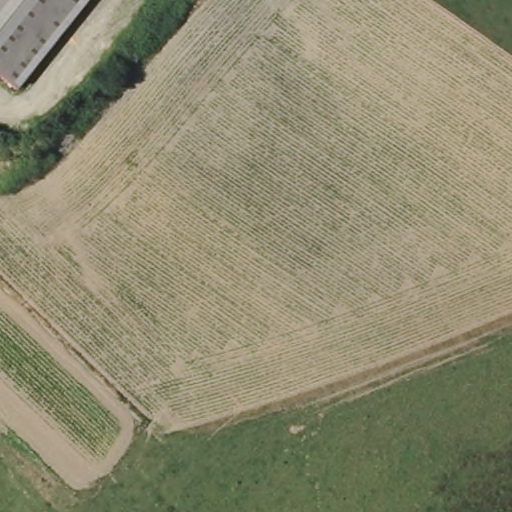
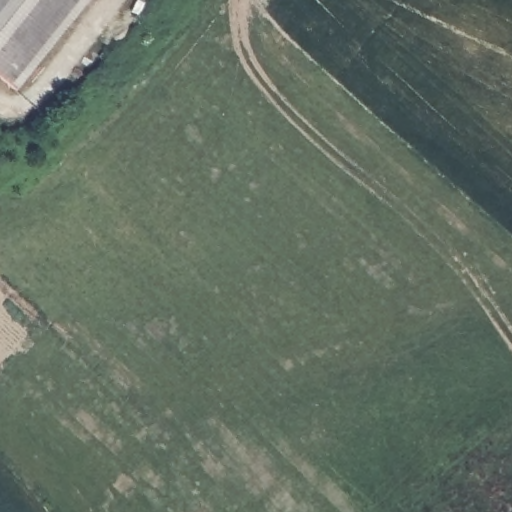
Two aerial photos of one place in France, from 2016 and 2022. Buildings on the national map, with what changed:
unchanged [(0,78),(0,0),(85,0),(8,86),(0,78)]

